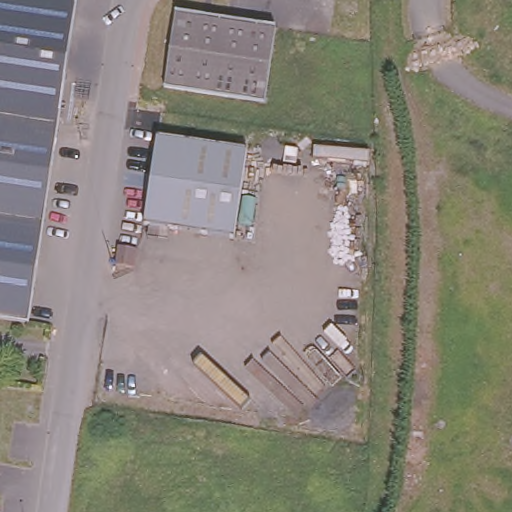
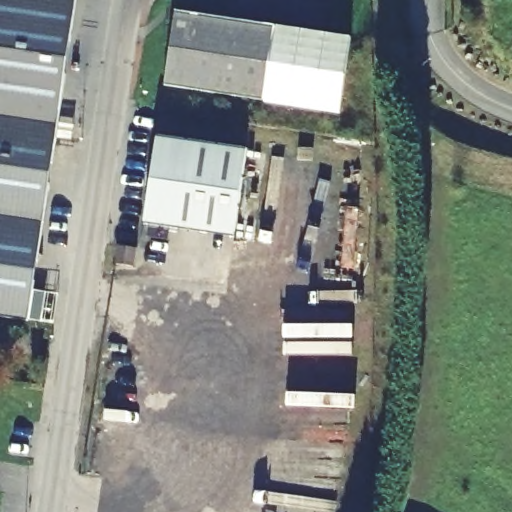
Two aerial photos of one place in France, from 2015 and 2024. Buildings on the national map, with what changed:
unchanged [(0,113),(0,0),(81,0),(62,123),(0,113)]
unchanged [(272,29),(262,104),(161,90),(170,16),(272,29)]
new [(272,29),(350,39),(340,114),(262,104),(272,29)]
unchanged [(62,123),(48,221),(0,213),(0,113),(62,123)]
unchanged [(233,241),(143,229),(155,140),(245,151),(233,241)]
unchanged [(48,221),(45,244),(33,319),(0,313),(0,213),(48,221)]
unchanged [(136,254),(134,264),(132,274),(115,270),(117,251),(136,254)]

